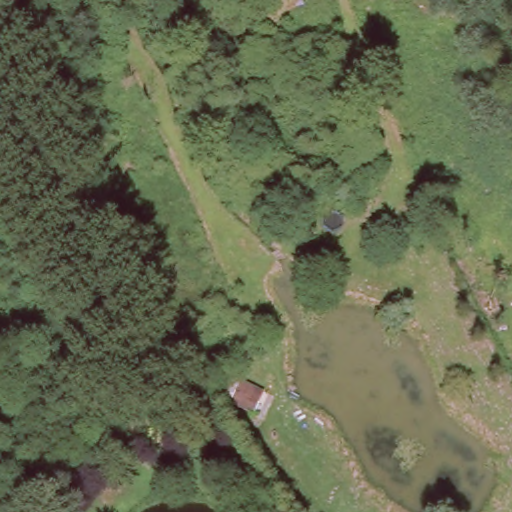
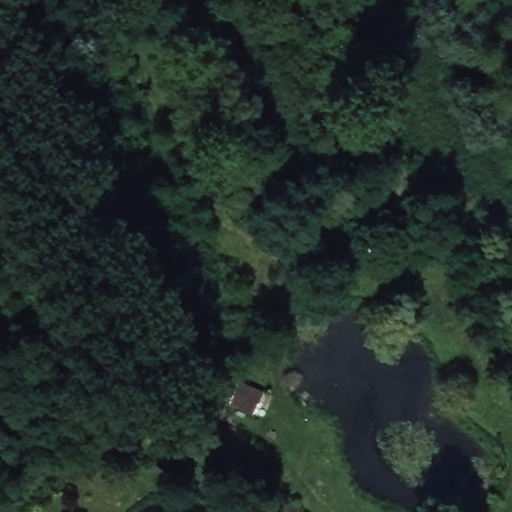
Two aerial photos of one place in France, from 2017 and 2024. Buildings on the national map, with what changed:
unchanged [(265,393),(253,418),(225,404),(236,380),(265,393)]

